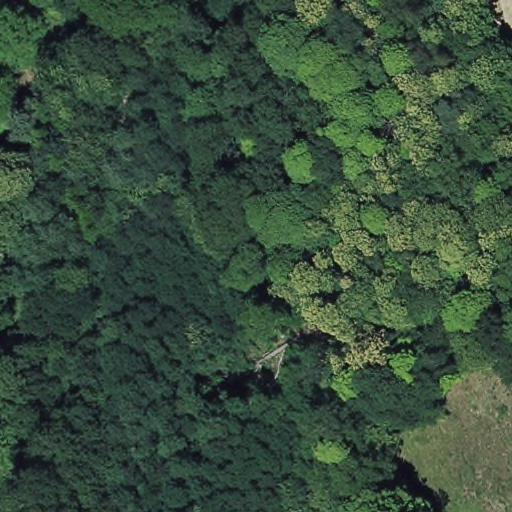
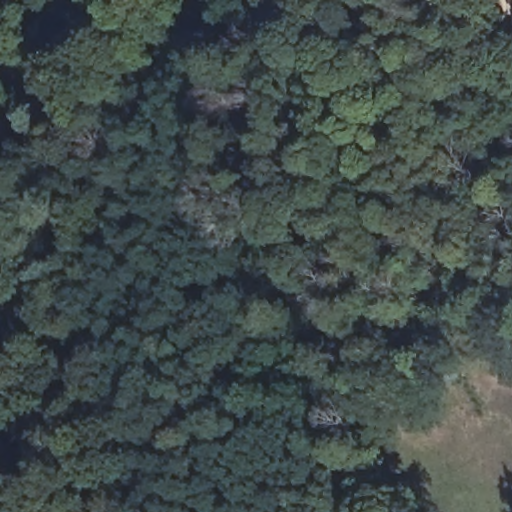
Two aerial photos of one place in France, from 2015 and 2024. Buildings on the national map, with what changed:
unchanged [(207,10),(213,19),(206,22),(201,13),(207,10)]

